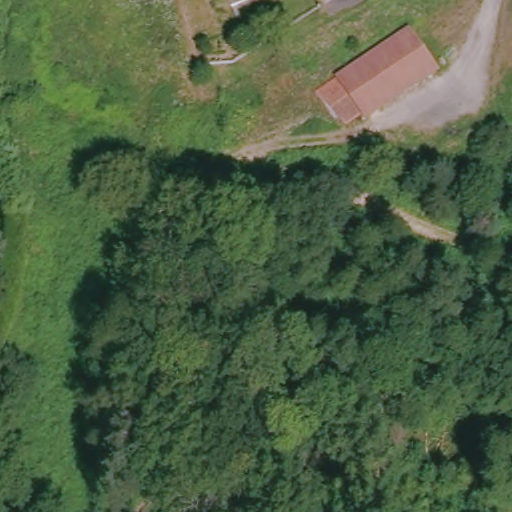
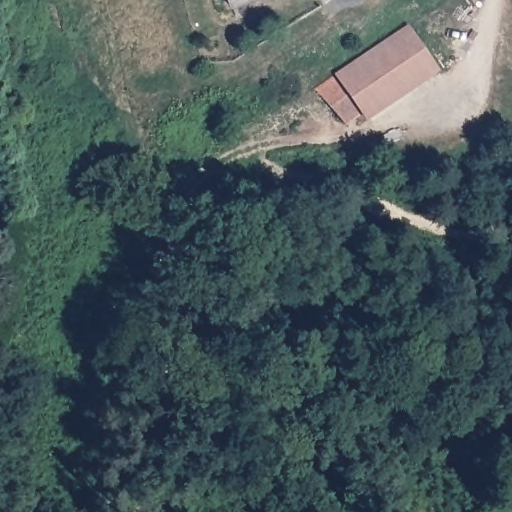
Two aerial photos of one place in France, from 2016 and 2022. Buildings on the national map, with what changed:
unchanged [(222,0),(258,0),(227,13),(222,0)]
unchanged [(405,26),(434,68),(366,115),(362,110),(337,75),(405,26)]
unchanged [(337,75),(362,110),(344,124),(313,91),(337,75)]

